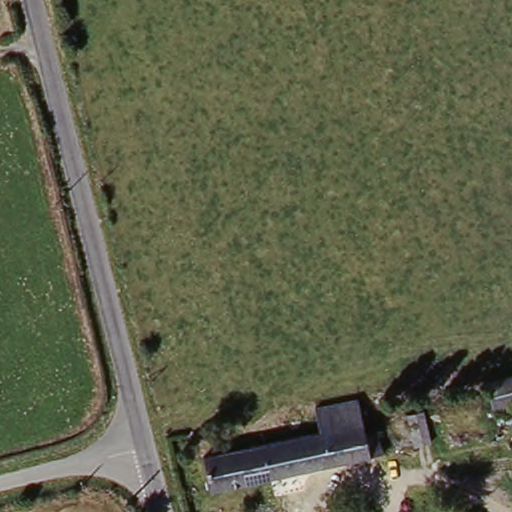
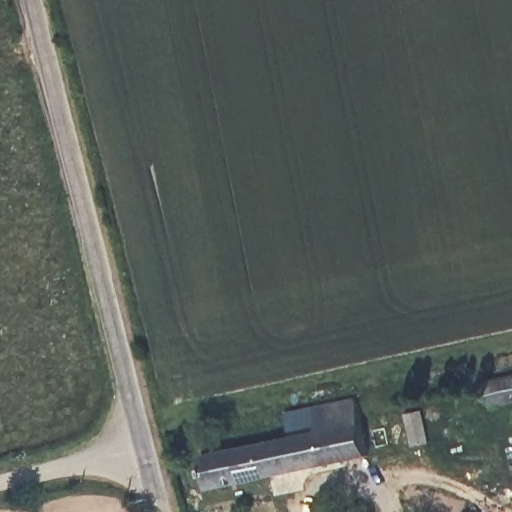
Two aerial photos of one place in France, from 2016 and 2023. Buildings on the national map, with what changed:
unchanged [(512,377),(512,403),(492,408),(488,383),(512,377)]
unchanged [(206,458),(319,431),(313,409),(357,402),(367,436),(381,432),(385,455),(371,457),(214,494),(206,458)]
unchanged [(402,420),(420,415),(427,449),(410,453),(402,420)]

